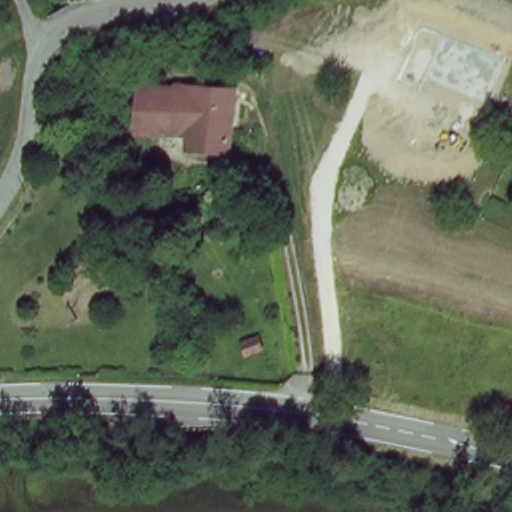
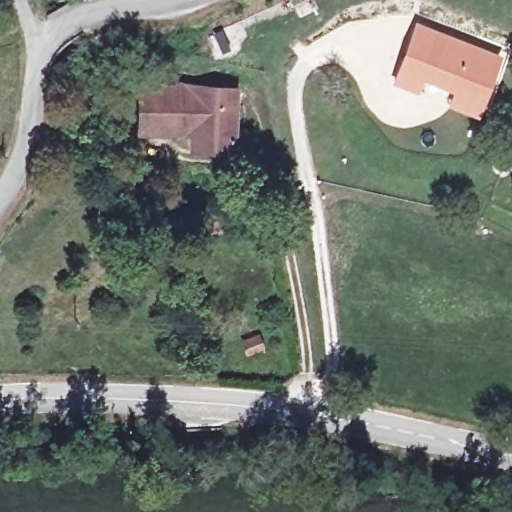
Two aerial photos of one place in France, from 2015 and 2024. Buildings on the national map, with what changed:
new [(416,23),(503,56),(479,121),(448,108),(453,93),(422,81),(418,94),(391,85),(416,23)]
unchanged [(197,89),(235,90),(231,148),(193,147),(194,137),(197,92),(197,89)]
unchanged [(194,137),(140,135),(143,91),(197,92),(194,137)]

